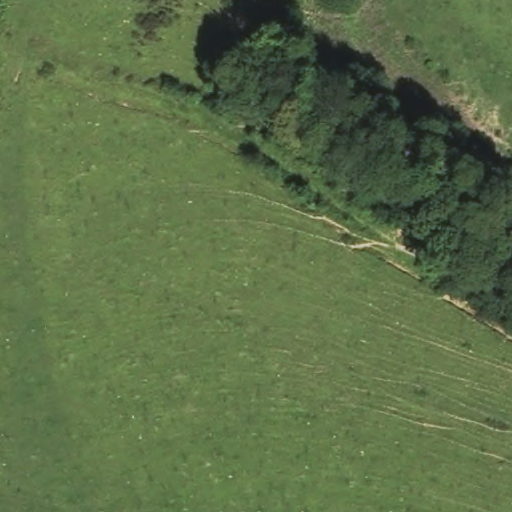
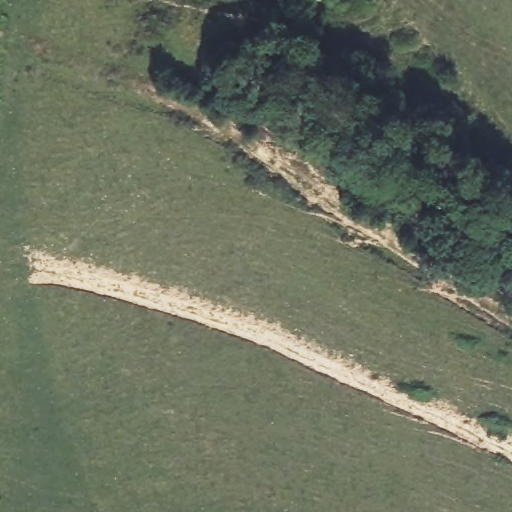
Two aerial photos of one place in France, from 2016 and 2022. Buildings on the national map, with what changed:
[]

